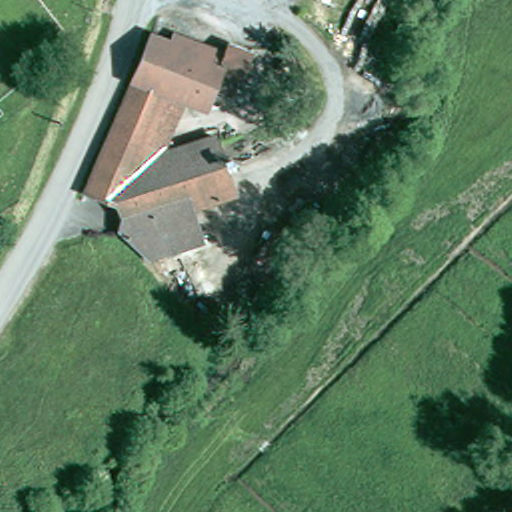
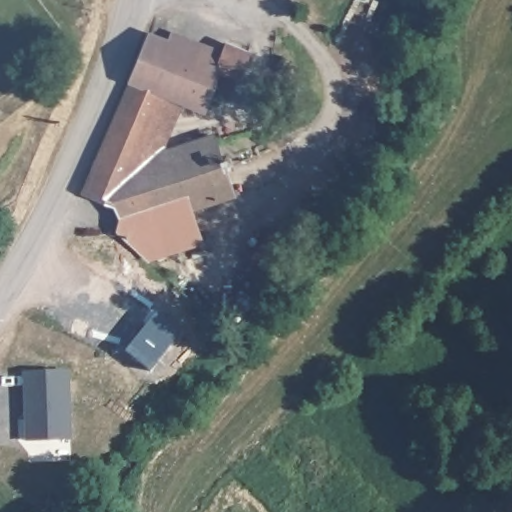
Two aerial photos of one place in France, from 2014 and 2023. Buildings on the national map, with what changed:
unchanged [(252,42),(245,69),(242,69),(238,82),(232,80),(230,86),(215,82),(207,104),(186,96),(165,152),(215,130),(237,188),(193,206),(205,237),(150,259),(124,237),(126,219),(127,214),(87,197),(150,39),(167,46),(173,31),(205,40),(227,45),(230,36),(252,42)]
unchanged [(303,225),(278,259),(263,249),(288,215),(303,225)]
new [(27,440),(25,370),(70,370),(72,439),(27,440)]

